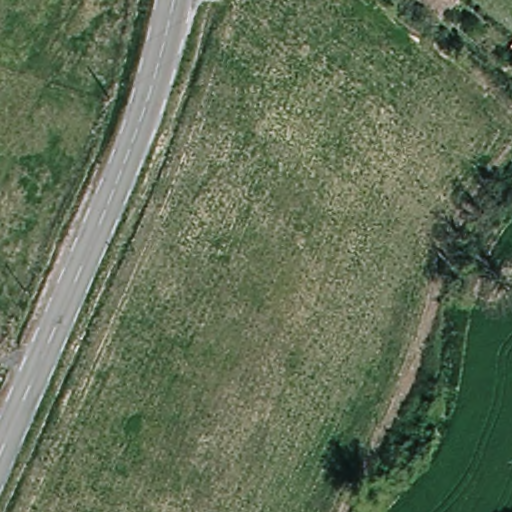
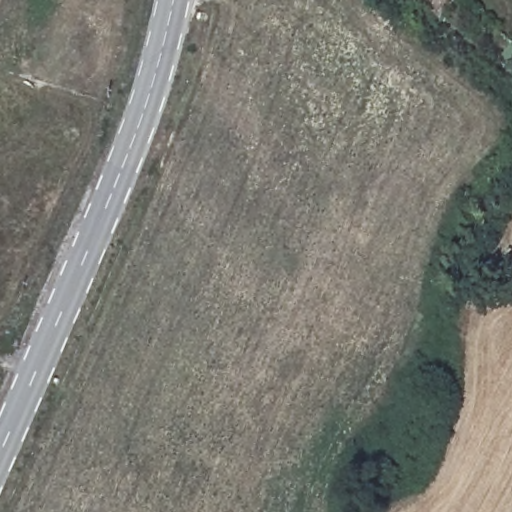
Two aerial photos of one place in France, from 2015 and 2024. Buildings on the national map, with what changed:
unchanged [(429,0),(461,0),(449,15),(429,0)]

